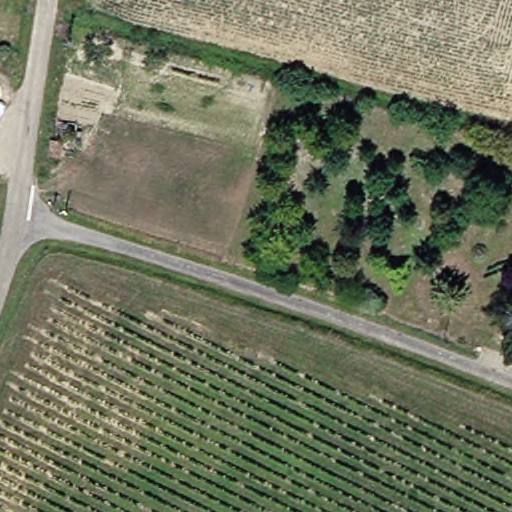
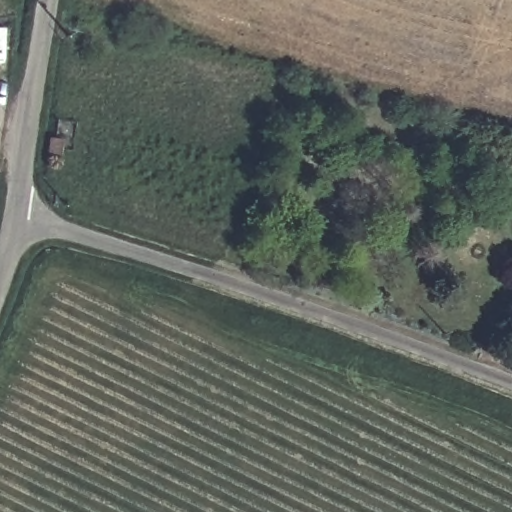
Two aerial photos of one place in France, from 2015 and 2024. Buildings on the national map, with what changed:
[]

